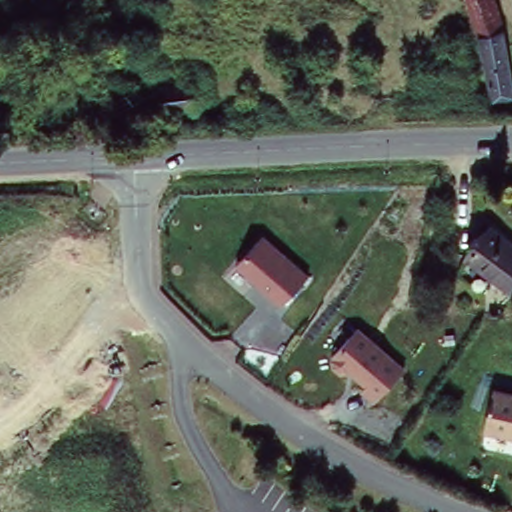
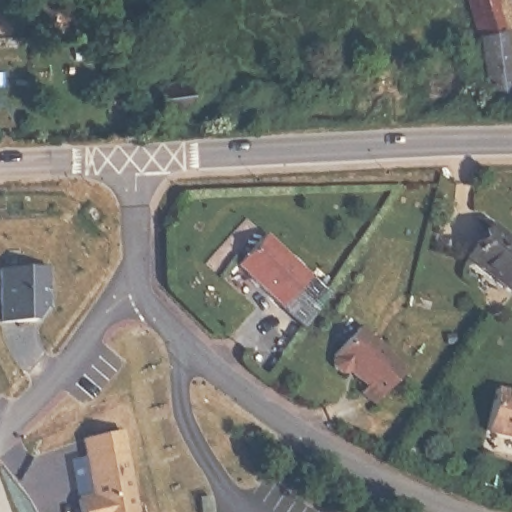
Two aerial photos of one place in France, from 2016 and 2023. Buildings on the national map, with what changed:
unchanged [(478,21),(471,0),(500,0),(505,14),(510,32),(508,32),(511,47),(512,53),(512,102),(497,105),(482,39),(478,21)]
unchanged [(185,82),(189,104),(162,109),(157,87),(185,82)]
unchanged [(512,243),(512,288),(511,290),(468,260),(490,227),(512,243)]
unchanged [(282,308),(237,267),(263,237),(308,276),(282,308)]
new [(50,259),(51,296),(39,309),(6,310),(4,261),(50,259)]
unchanged [(377,399),(331,359),(357,329),(406,367),(377,399)]
unchanged [(485,435),(493,388),(512,393),(512,440),(485,435)]
new [(119,512),(93,512),(87,489),(102,485),(87,431),(124,421),(145,505),(119,512)]

